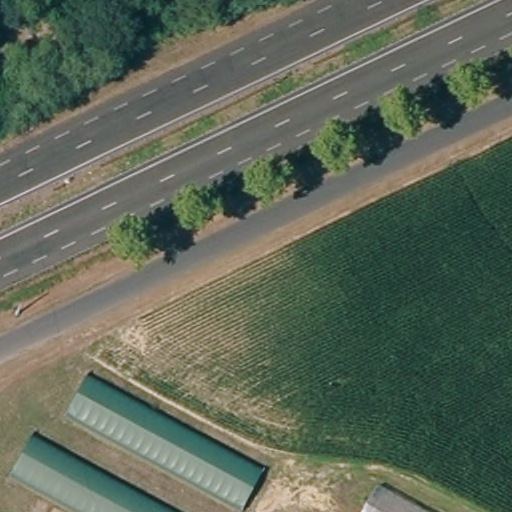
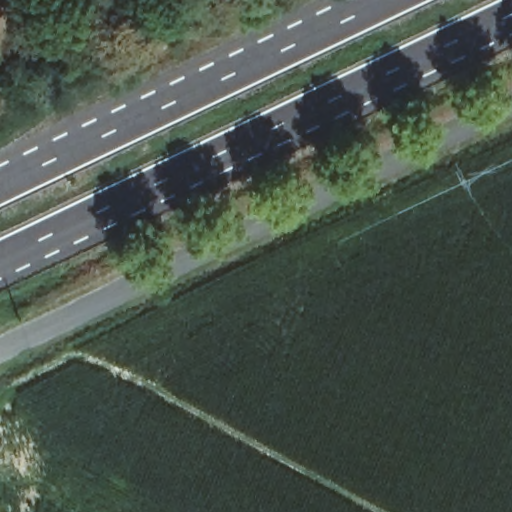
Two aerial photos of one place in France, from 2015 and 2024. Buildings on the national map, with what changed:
demolished [(64,414),(86,376),(263,471),(241,512),(64,414)]
demolished [(32,437),(169,512),(75,512),(8,476),(32,437)]
demolished [(433,512),(337,512),(307,495),(329,457),(433,512)]

